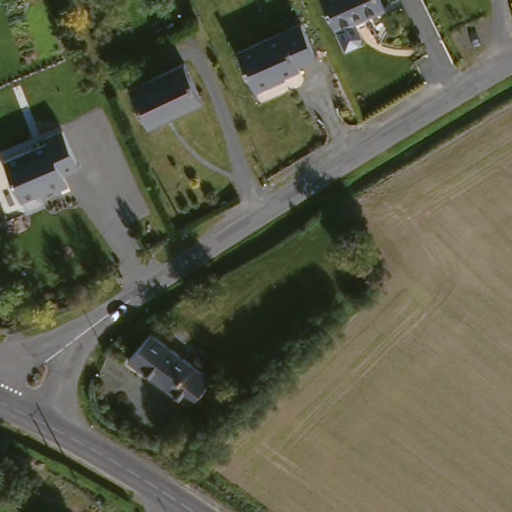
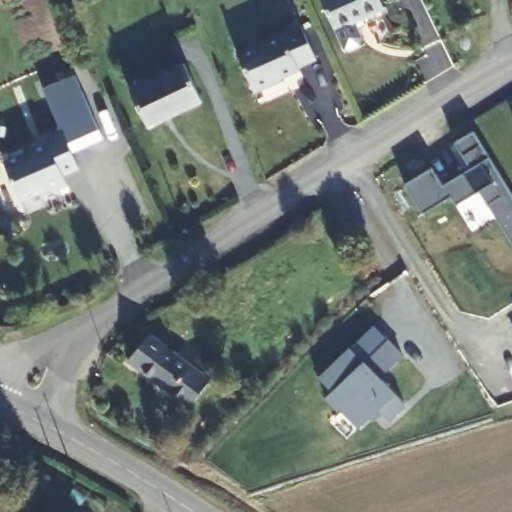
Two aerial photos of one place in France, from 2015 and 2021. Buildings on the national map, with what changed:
unchanged [(365,14),(335,27),(322,0),(380,0),(384,9),(367,16),(365,14)]
unchanged [(302,27),(317,61),(299,70),(300,72),(272,84),(273,86),(255,94),(238,55),(302,27)]
unchanged [(147,126),(130,90),(184,64),(202,100),(147,126)]
new [(422,210),(404,180),(431,165),(442,182),(470,165),(455,139),(473,127),(512,191),(512,244),(486,199),(501,191),(493,179),(456,201),(450,192),(422,210)]
unchanged [(55,189),(57,197),(40,204),(37,195),(16,204),(1,163),(48,145),(46,139),(64,132),(79,171),(62,178),(66,185),(55,189)]
new [(405,352),(379,374),(406,401),(389,419),(370,416),(358,426),(341,407),(337,410),(324,395),(331,389),(317,375),(350,345),(374,322),(405,352)]
unchanged [(132,360),(155,335),(216,380),(193,406),(132,360)]

